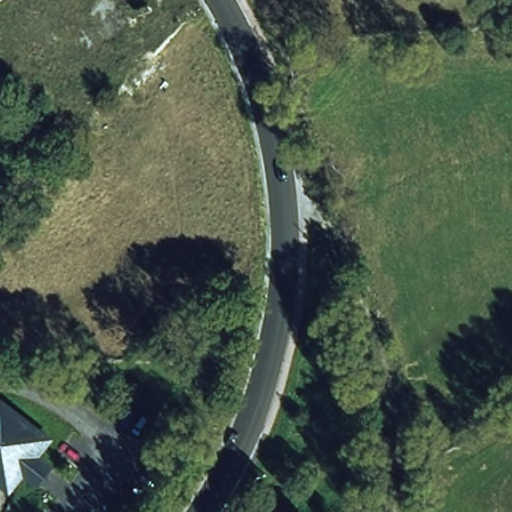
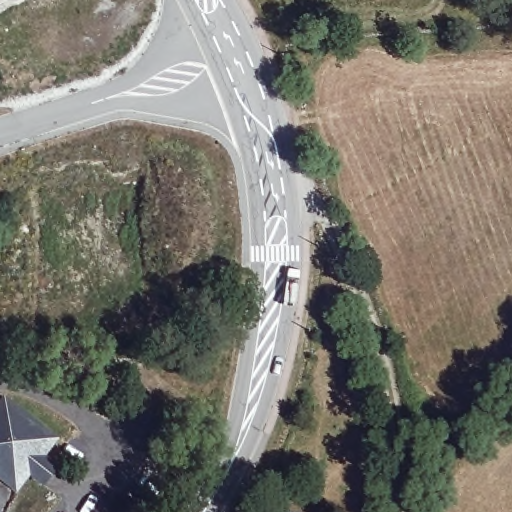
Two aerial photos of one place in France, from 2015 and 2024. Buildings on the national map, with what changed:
unchanged [(53,439),(40,456),(54,467),(41,482),(28,471),(13,490),(0,479),(0,404),(3,400),(53,439)]

